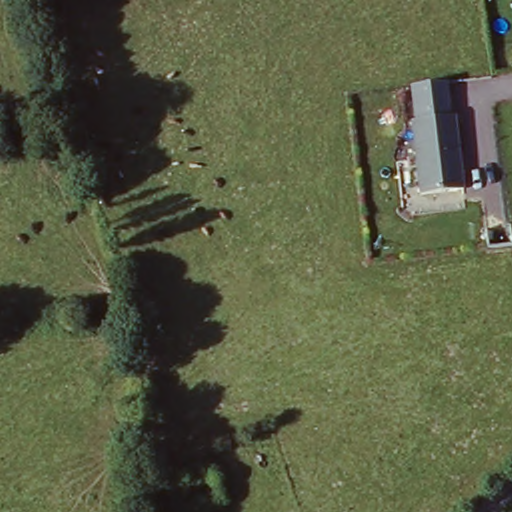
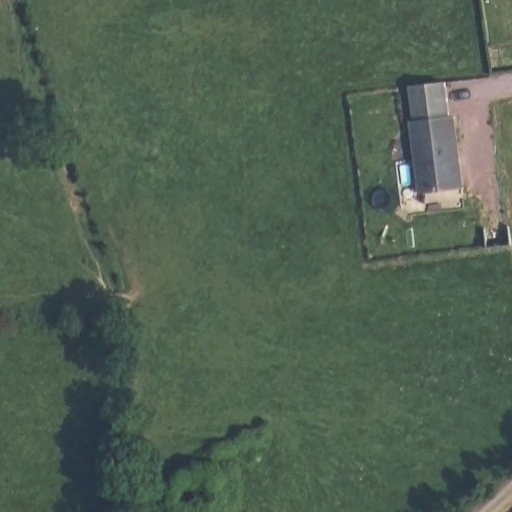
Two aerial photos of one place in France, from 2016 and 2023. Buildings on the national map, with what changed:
unchanged [(449,79),(453,114),(460,113),(466,187),(424,191),(416,118),(420,117),(416,82),(449,79)]
unchanged [(220,502),(179,512),(177,512),(170,481),(212,472),(220,502)]

